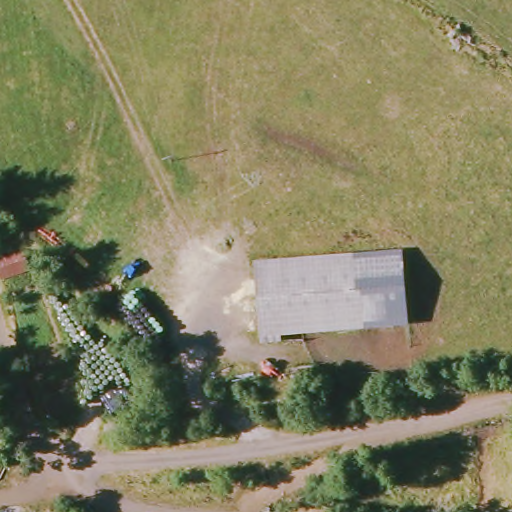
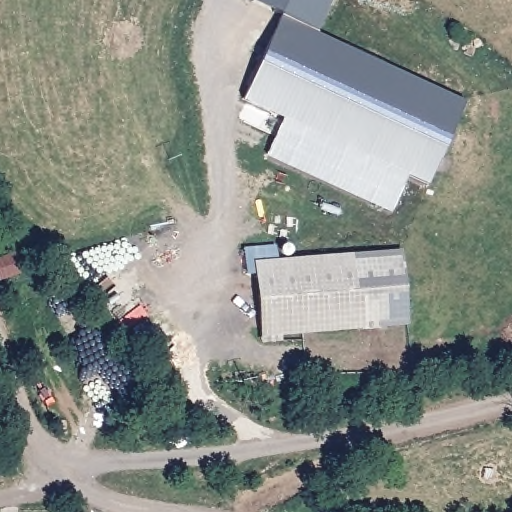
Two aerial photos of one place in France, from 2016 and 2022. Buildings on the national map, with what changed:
new [(280,16),(465,100),(427,184),(243,100),(280,16)]
unchanged [(17,244),(22,262),(0,269),(0,249),(17,244)]
unchanged [(252,263),(403,255),(408,323),(257,332),(252,263)]

